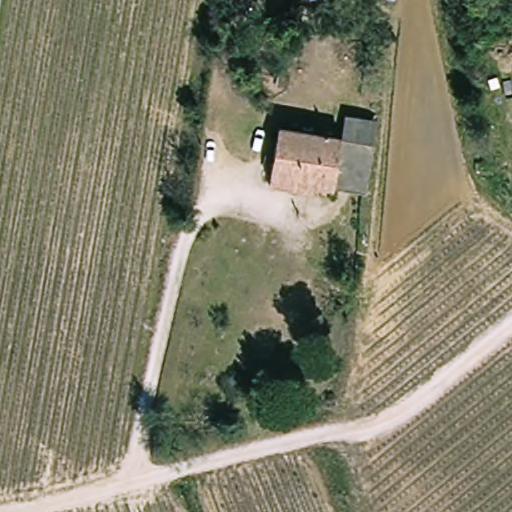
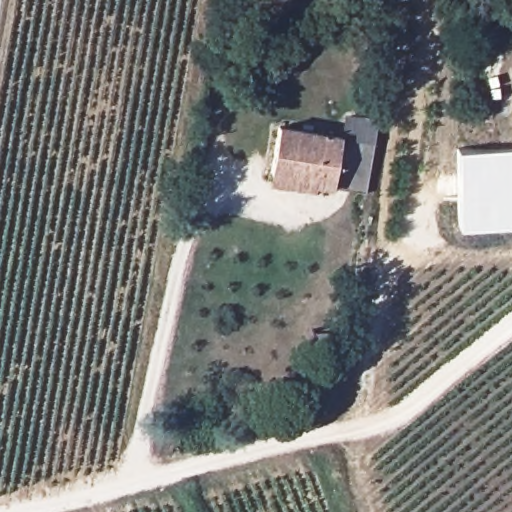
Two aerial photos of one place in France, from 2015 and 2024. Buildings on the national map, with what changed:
unchanged [(339,135),(342,135),(346,114),(378,119),(367,191),(331,186),(339,135)]
unchanged [(271,185),(272,176),(278,126),(339,135),(331,186),(317,184),(316,191),(271,185)]
new [(457,147),(512,147),(512,225),(458,226),(457,147)]

